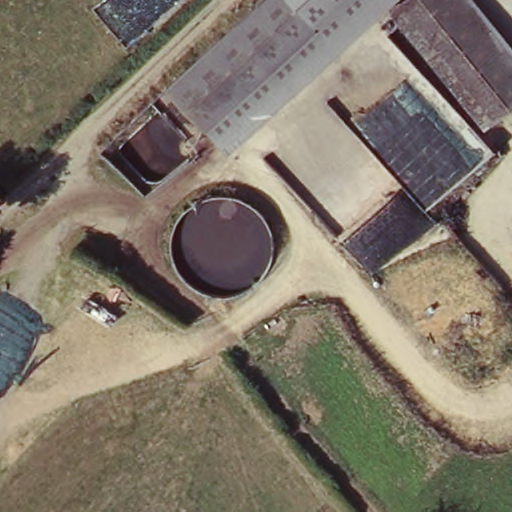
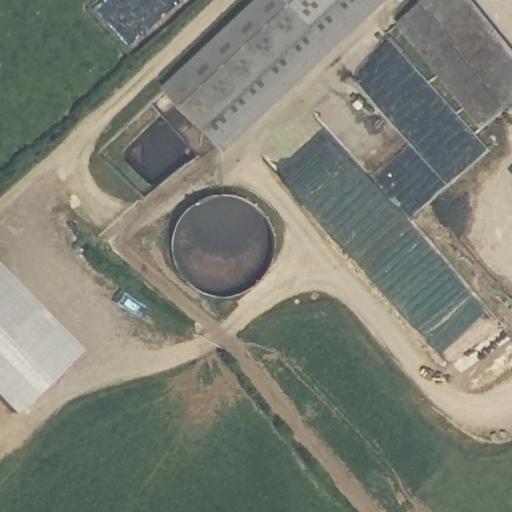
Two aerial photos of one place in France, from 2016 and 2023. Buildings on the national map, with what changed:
unchanged [(166,91),(261,9),(270,0),(384,0),(215,148),(166,91)]
unchanged [(269,0),(270,0),(261,9),(269,0)]
unchanged [(413,0),(467,0),(512,55),(512,110),(486,131),(394,14),(413,0)]
new [(11,414),(0,404),(0,274),(74,350),(11,414)]

